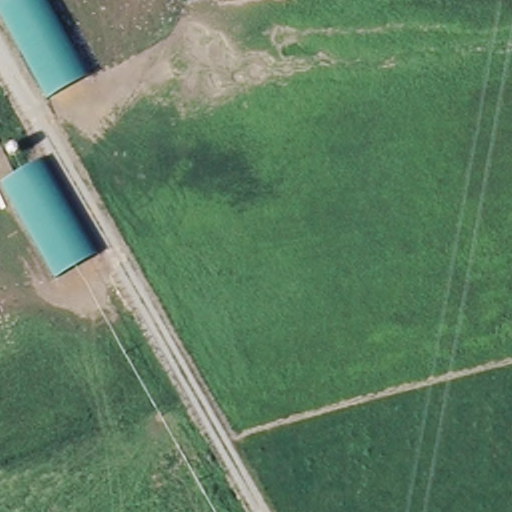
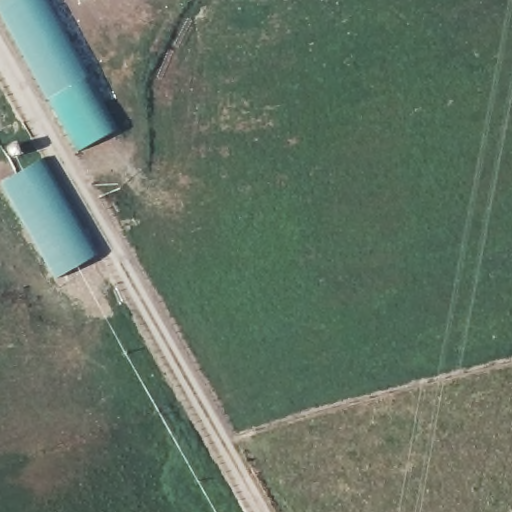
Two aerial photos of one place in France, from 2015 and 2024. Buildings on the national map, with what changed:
unchanged [(47,104),(0,22),(0,0),(41,0),(85,81),(47,104)]
new [(112,130),(76,152),(47,104),(85,81),(112,130)]
unchanged [(96,257),(59,282),(1,187),(40,166),(96,257)]

